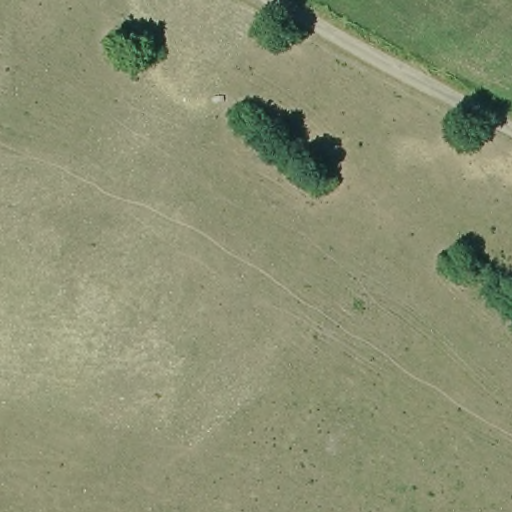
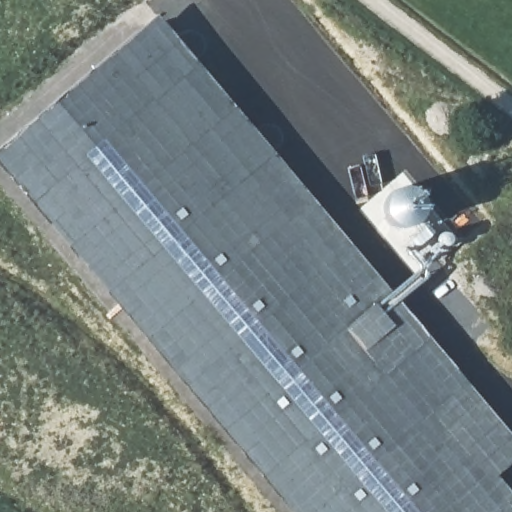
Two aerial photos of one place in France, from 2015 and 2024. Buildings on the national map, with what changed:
new [(158,14),(255,127),(393,292),(378,305),(382,310),(398,298),(512,434),(512,463),(498,475),(512,492),(512,512),(290,512),(0,166),(0,146),(80,77),(158,14)]
new [(405,170),(460,241),(415,275),(360,207),(405,170)]

